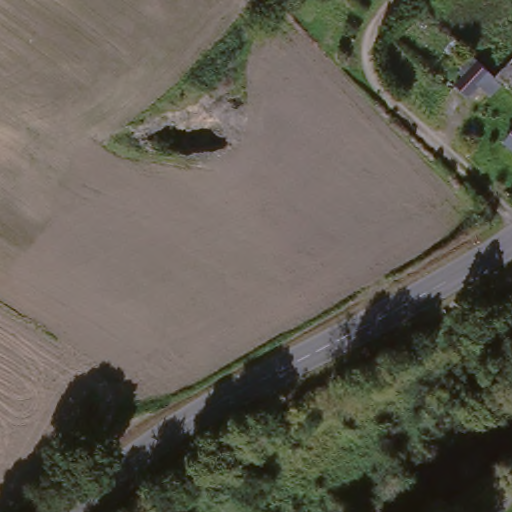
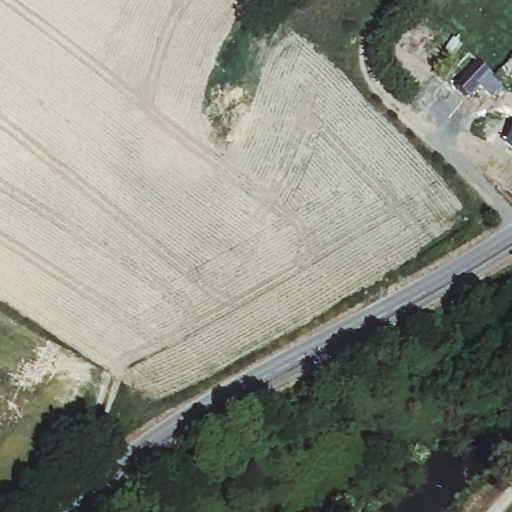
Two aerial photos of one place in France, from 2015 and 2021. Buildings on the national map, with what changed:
unchanged [(450,80),(474,55),(493,71),(468,97),(450,80)]
unchanged [(512,129),(512,153),(501,143),(512,129)]

